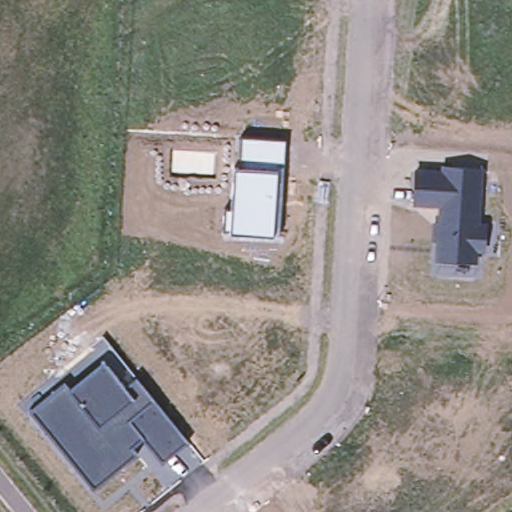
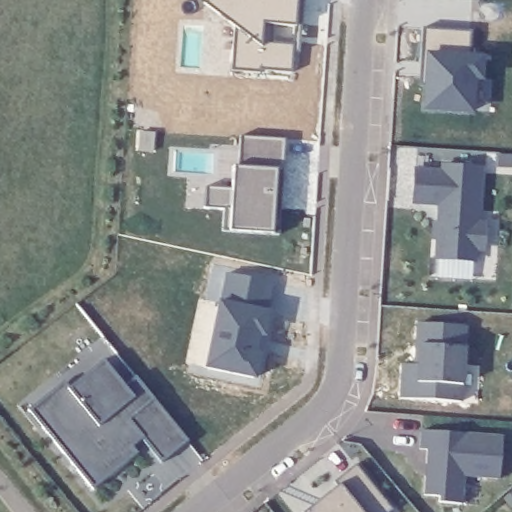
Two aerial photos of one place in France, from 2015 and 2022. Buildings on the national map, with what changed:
new [(292,73),(260,70),(260,73),(230,71),(234,18),(210,0),(297,0),(297,2),(295,34),(294,44),(292,73)]
new [(422,27),(471,30),(470,58),(481,58),(480,78),(472,78),(471,112),(424,109),(425,86),(418,86),(420,62),(422,27)]
unchanged [(287,139),(280,233),(272,233),(230,230),(230,227),(225,227),(225,206),(232,206),(235,164),(238,164),(240,136),(287,139)]
unchanged [(442,168),(443,162),(484,164),(480,219),(487,219),(485,252),(477,252),(477,261),(437,259),(438,238),(430,237),(431,221),(439,221),(440,205),(412,202),(414,164),(442,168)]
new [(272,283),(268,308),(274,309),(271,337),(265,337),(262,352),(267,352),(263,378),(208,366),(228,275),(272,283)]
new [(403,365),(415,365),(418,324),(465,326),(460,402),(400,398),(403,365)]
unchanged [(189,440),(164,462),(144,438),(132,447),(137,452),(94,489),(28,411),(65,381),(69,388),(102,361),(124,386),(137,375),(189,440)]
new [(503,436),(500,480),(464,477),(462,504),(440,502),(440,496),(425,495),(427,449),(420,448),(421,429),(503,436)]
new [(390,512),(304,512),(310,506),(314,510),(325,501),(322,496),(335,486),(331,482),(355,464),(392,510),(390,512)]

